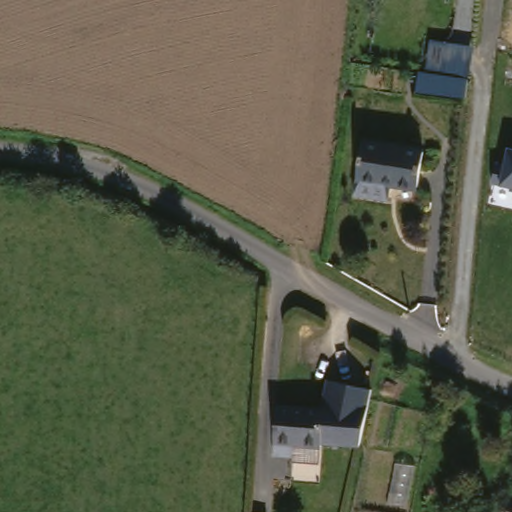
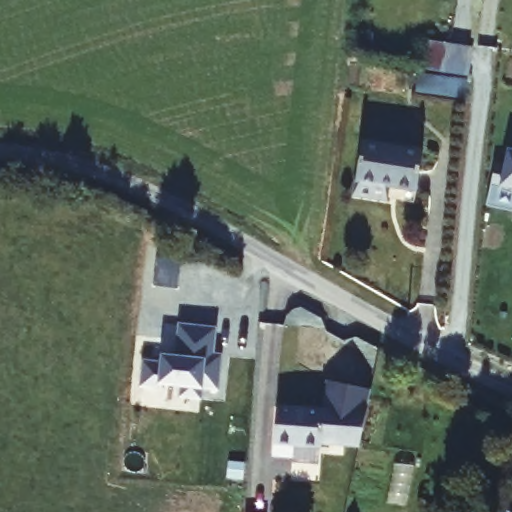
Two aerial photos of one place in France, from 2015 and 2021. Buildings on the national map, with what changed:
unchanged [(463,85),(424,77),(430,41),(473,48),(463,85)]
unchanged [(414,95),(417,76),(463,85),(459,103),(414,95)]
unchanged [(422,152),(413,192),(387,187),(383,202),(351,195),(354,180),(363,141),(422,152)]
unchanged [(510,188),(492,185),(496,165),(502,166),(506,147),(512,148),(512,193),(510,192),(510,188)]
new [(146,362),(162,364),(163,356),(178,358),(181,326),(215,330),(212,354),(221,355),(217,388),(201,386),(200,399),(182,396),(183,385),(162,382),(161,388),(144,385),(146,362)]
unchanged [(287,461),(288,455),(268,452),(275,404),(320,410),(327,381),(370,393),(356,443),(355,448),(317,444),(317,448),(316,447),(313,464),(287,461)]
unchanged [(512,503),(512,512),(505,512),(508,502),(512,503)]

